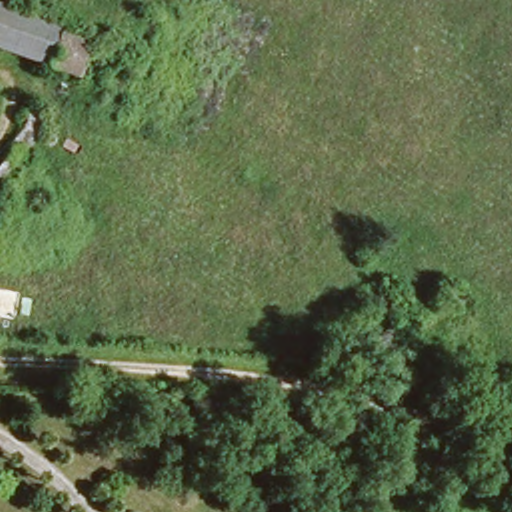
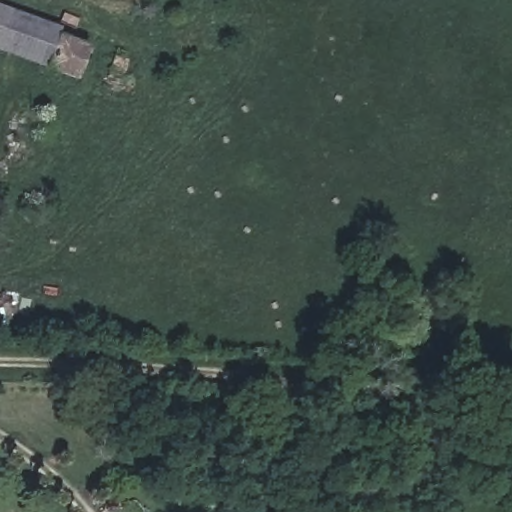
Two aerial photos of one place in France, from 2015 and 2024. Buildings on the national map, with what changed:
unchanged [(92,65),(85,63),(80,75),(51,65),(1,47),(2,41),(2,40),(0,39),(0,9),(52,27),(98,44),(92,65)]
unchanged [(124,57),(155,69),(149,88),(137,83),(132,96),(112,89),(124,57)]

